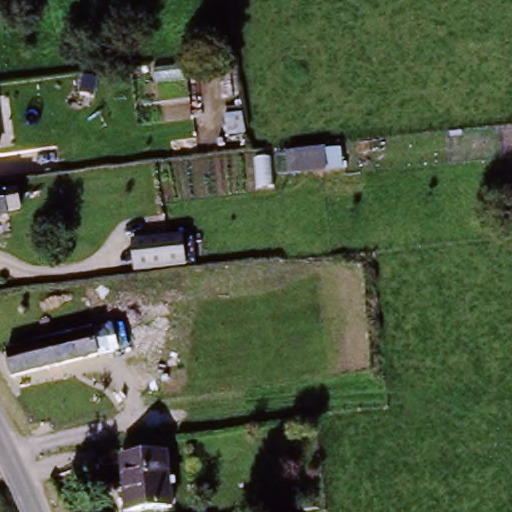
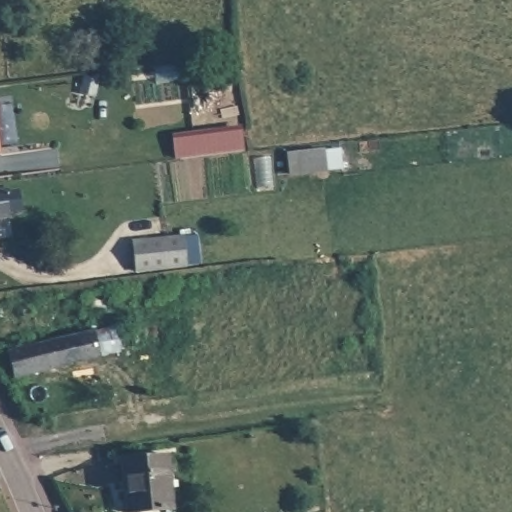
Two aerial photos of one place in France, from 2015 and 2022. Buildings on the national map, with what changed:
new [(242,125),(246,151),(175,160),(171,135),(242,125)]
unchanged [(286,175),(282,151),(338,147),(342,170),(286,175)]
unchanged [(11,197),(14,216),(1,217),(2,220),(0,220),(0,198),(11,197)]
unchanged [(180,236),(184,266),(133,273),(130,243),(180,236)]
unchanged [(7,350),(27,344),(60,336),(59,332),(69,330),(70,333),(93,328),(100,355),(35,372),(15,378),(7,350)]
unchanged [(128,491),(125,461),(166,457),(171,509),(137,512),(126,512),(124,492),(128,491)]

